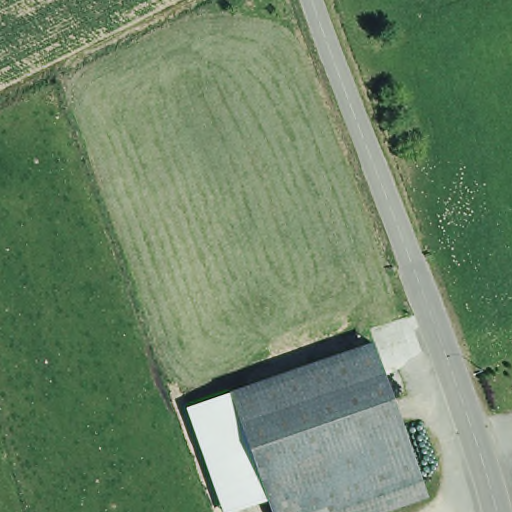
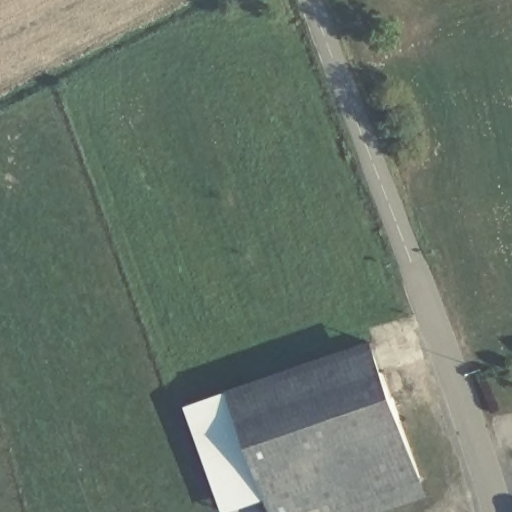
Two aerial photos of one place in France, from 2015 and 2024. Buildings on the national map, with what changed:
unchanged [(427,496),(383,512),(275,512),(271,503),(267,493),(240,417),(229,388),(372,338),(382,367),(427,496)]
unchanged [(229,388),(240,417),(267,493),(236,505),(227,508),(190,410),(188,403),(197,399),(229,388)]

